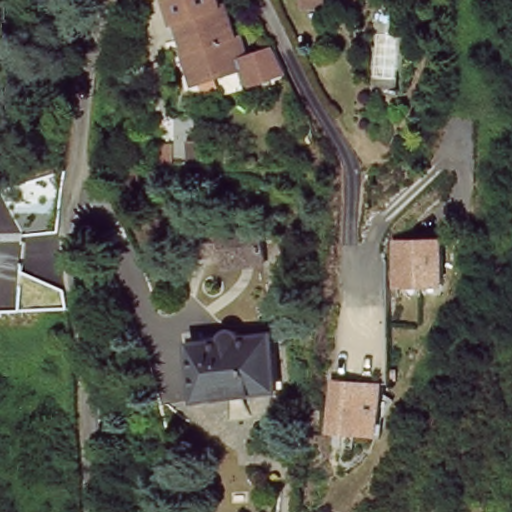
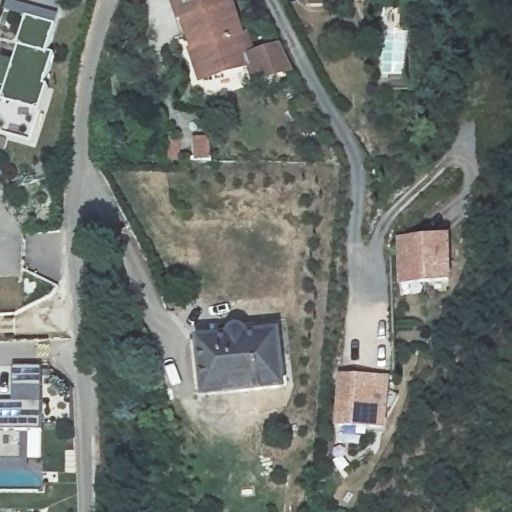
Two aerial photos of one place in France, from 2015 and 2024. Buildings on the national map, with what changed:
unchanged [(286,72),(259,81),(253,64),(208,80),(202,63),(206,61),(202,48),(197,49),(187,19),(185,19),(178,0),(228,0),(230,4),(234,3),(252,56),(277,47),(284,45),(296,69),(286,72)]
unchanged [(317,10),(316,0),(344,0),(344,8),(317,10)]
new [(50,52),(56,54),(46,85),(50,87),(41,112),(32,140),(0,131),(0,106),(2,101),(0,100),(0,72),(5,59),(14,61),(18,48),(28,18),(57,26),(50,52)]
unchanged [(187,156),(186,129),(204,130),(205,158),(187,156)]
unchanged [(205,265),(201,227),(264,218),(272,260),(205,265)]
unchanged [(450,241),(452,284),(405,288),(402,244),(450,241)]
unchanged [(227,342),(226,334),(233,327),(247,327),(255,334),(255,340),(283,337),(287,392),(211,398),(209,344),(227,342)]
new [(0,403),(12,404),(13,367),(43,368),(43,433),(27,433),(27,472),(0,472),(0,403)]
unchanged [(390,382),(390,394),(388,394),(386,429),(343,428),(345,379),(390,382)]

